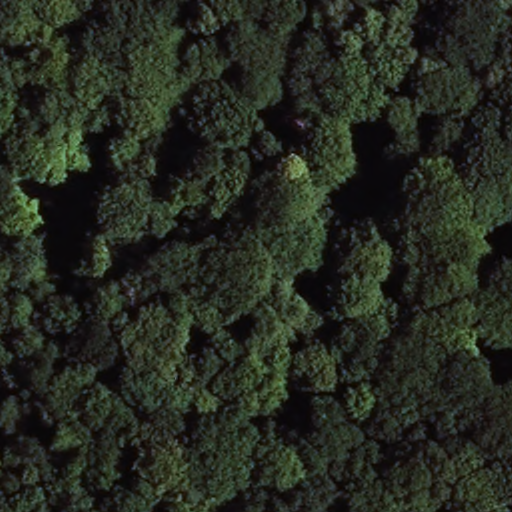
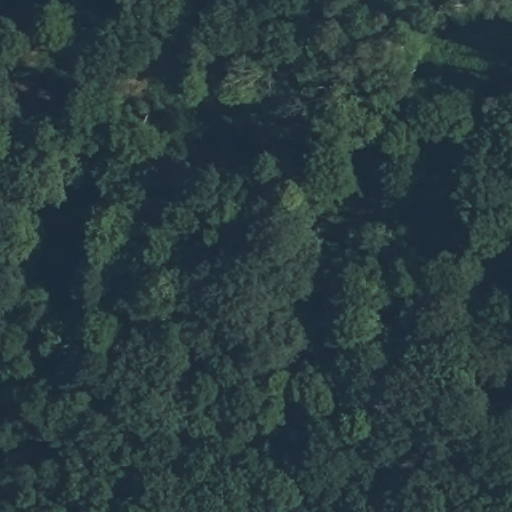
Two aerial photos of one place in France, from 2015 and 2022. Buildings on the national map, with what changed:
[]

